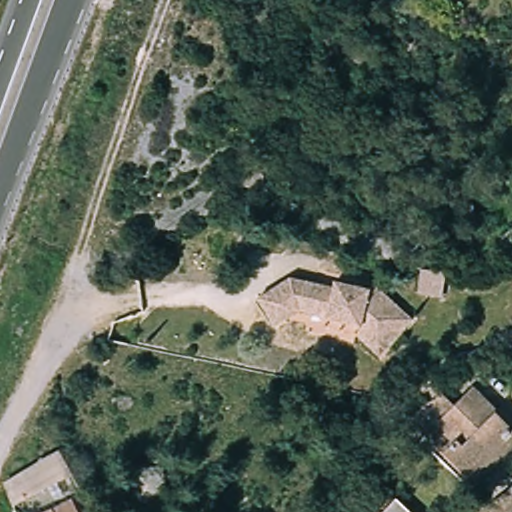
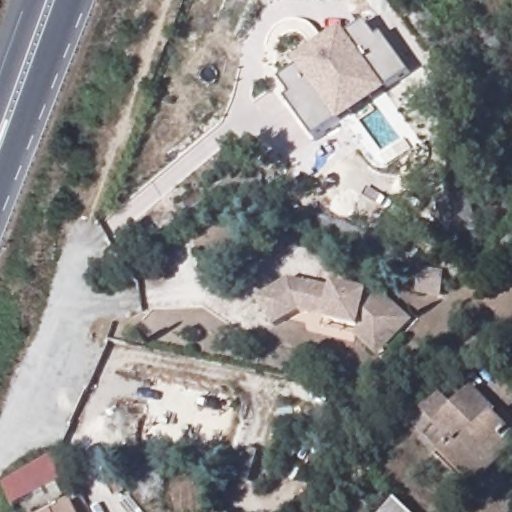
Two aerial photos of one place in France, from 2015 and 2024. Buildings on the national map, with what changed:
new [(377,38),(381,35),(409,74),(387,90),(387,91),(340,126),(339,125),(316,141),(287,102),(293,98),(281,82),(300,70),(295,63),(343,27),(348,35),(365,22),(377,38)]
unchanged [(467,189),(473,230),(455,233),(448,191),(467,189)]
unchanged [(327,327),(328,313),(303,312),(278,328),(261,302),(290,282),(374,292),(382,286),(421,322),(385,361),(360,337),(365,331),(327,327)]
unchanged [(463,406),(478,392),(504,419),(498,424),(512,438),(512,440),(488,458),(484,454),(457,478),(442,462),(454,452),(435,432),(425,420),(435,411),(452,395),(463,406)]
unchanged [(468,491),(457,478),(484,454),(488,458),(512,440),(512,454),(468,491)]
unchanged [(0,491),(0,481),(53,452),(67,477),(7,503),(0,491)]
unchanged [(512,498),(512,512),(495,512),(512,498)]
unchanged [(395,502),(406,512),(386,512),(395,502)]
unchanged [(63,505),(67,511),(68,512),(49,512),(63,505)]

